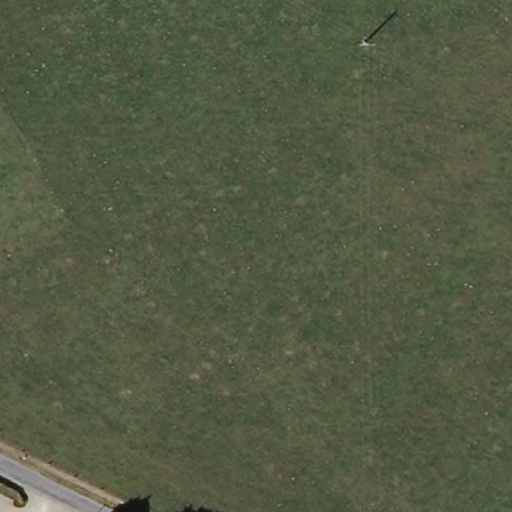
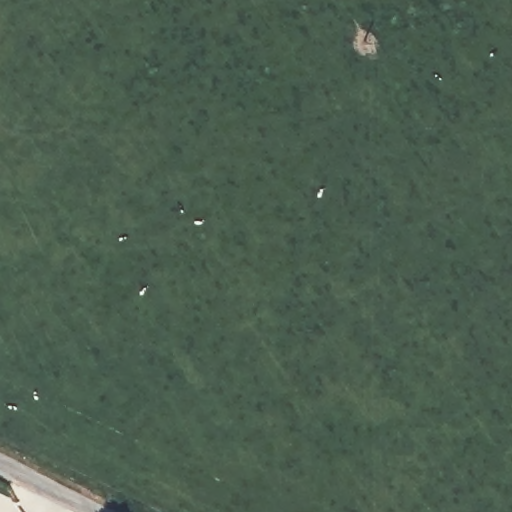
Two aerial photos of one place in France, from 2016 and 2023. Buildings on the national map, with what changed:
[]

